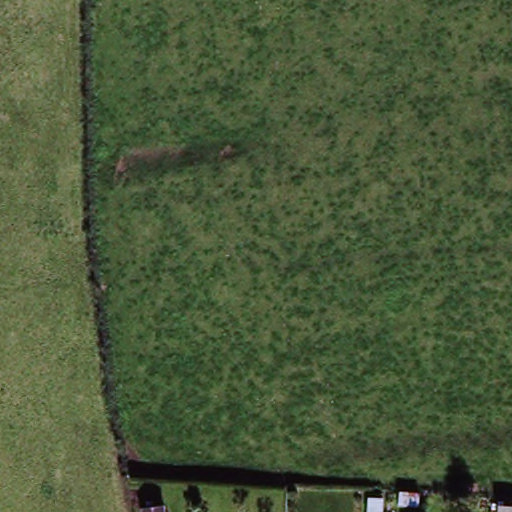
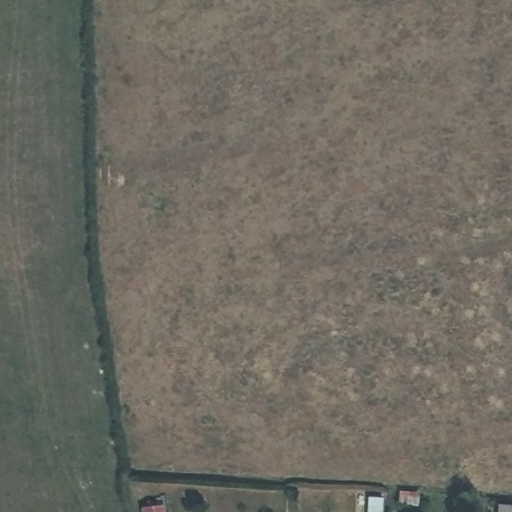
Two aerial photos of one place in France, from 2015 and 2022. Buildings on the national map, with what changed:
unchanged [(425,496),(405,495),(406,479),(426,480),(425,496)]
unchanged [(374,512),(375,486),(391,487),(390,512),(374,512)]
unchanged [(499,508),(501,490),(512,490),(512,508),(499,508)]
unchanged [(166,502),(166,512),(145,512),(146,499),(166,502)]

